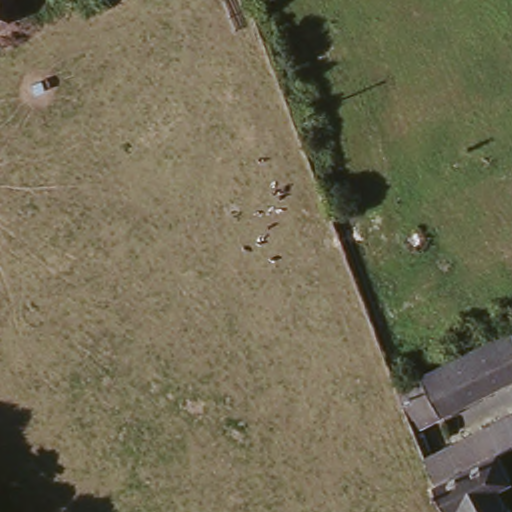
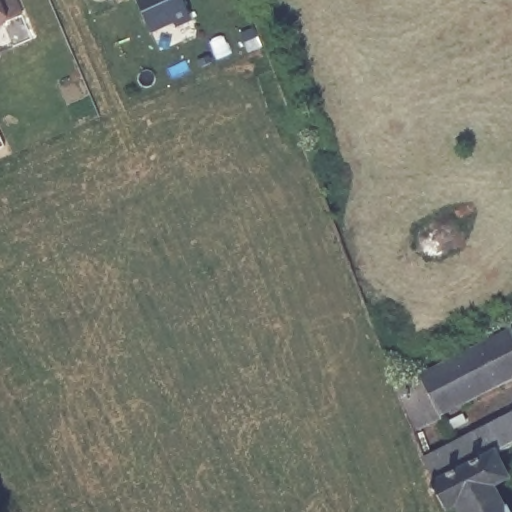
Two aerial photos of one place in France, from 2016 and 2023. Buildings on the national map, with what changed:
unchanged [(0,26),(0,0),(8,0),(16,19),(0,26)]
new [(178,25),(176,20),(153,30),(139,0),(184,0),(192,18),(178,25)]
unchanged [(506,328),(511,335),(512,335),(512,378),(437,416),(417,373),(506,328)]
unchanged [(447,506),(435,512),(434,512),(421,483),(424,479),(415,458),(512,408),(512,443),(494,452),(505,477),(489,485),(500,506),(503,504),(507,512),(449,512),(447,506)]

